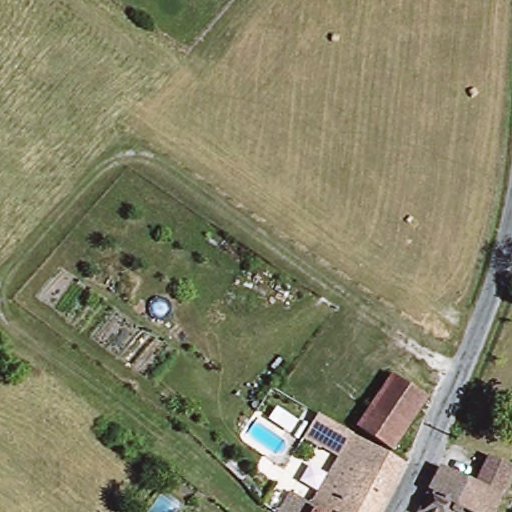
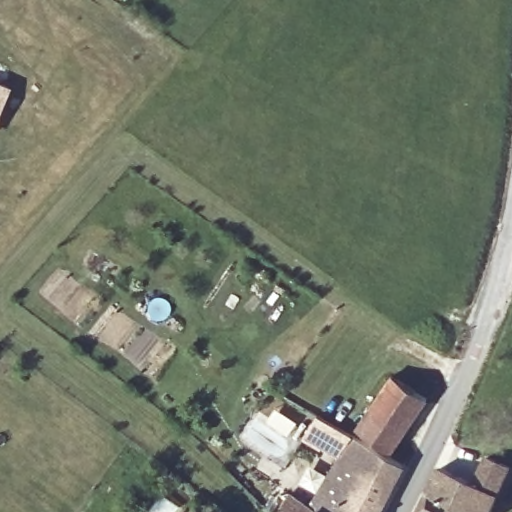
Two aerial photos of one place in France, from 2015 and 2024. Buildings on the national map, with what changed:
new [(13,86),(0,118),(0,80),(13,86)]
unchanged [(364,438),(363,437),(375,422),(402,385),(430,399),(394,456),(364,438)]
unchanged [(321,445),(319,448),(302,438),(316,413),(345,427),(346,428),(355,433),(340,456),(321,445)]
unchanged [(387,504),(383,512),(282,512),(290,498),(309,508),(340,456),(355,433),(363,437),(364,438),(394,456),(395,457),(407,463),(387,504)]
unchanged [(451,512),(422,512),(418,510),(445,461),(481,481),(496,454),(512,463),(512,490),(507,500),(501,496),(492,512),(473,512),(457,503),(451,512)]

